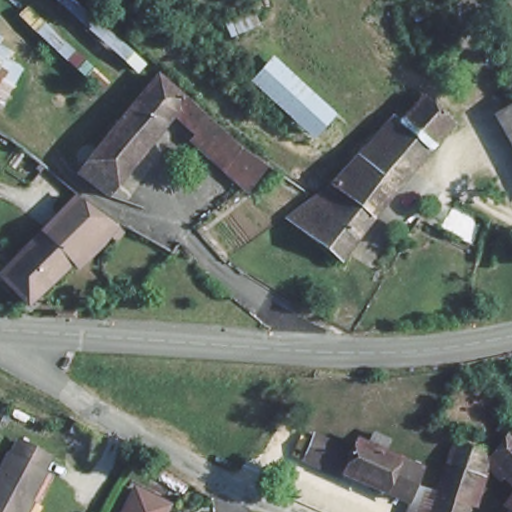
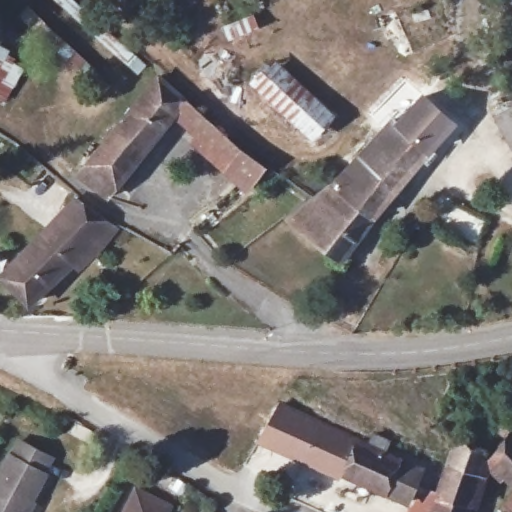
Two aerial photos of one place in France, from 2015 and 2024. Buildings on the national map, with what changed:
unchanged [(229,40),(219,11),(245,0),(249,0),(260,24),(229,40)]
unchanged [(512,0),(505,6),(499,0),(512,0)]
unchanged [(0,101),(0,51),(25,66),(5,104),(0,101)]
unchanged [(308,132),(261,89),(255,82),(270,66),(275,62),(329,112),(308,132)]
unchanged [(233,155),(228,160),(195,135),(199,128),(175,109),(108,189),(80,165),(158,70),(267,156),(255,171),(233,155)]
unchanged [(335,184),(395,120),(400,125),(426,96),(456,124),(382,200),(340,258),(287,219),(315,192),(328,179),(335,184)]
unchanged [(512,143),(497,117),(512,108),(512,143)]
unchanged [(119,229),(120,229),(110,241),(102,235),(94,243),(88,239),(26,302),(0,280),(0,272),(72,200),(108,227),(113,224),(119,229)]
new [(353,435),(347,445),(313,427),(299,450),(335,470),(338,463),(345,466),(338,477),(256,441),(280,400),(353,435)]
unchanged [(512,426),(510,428),(512,430),(512,478),(488,457),(506,435),(497,425),(505,415),(512,421),(512,426)]
unchanged [(415,467),(400,496),(338,463),(335,470),(299,450),(313,427),(347,445),(353,435),(362,440),(368,427),(385,435),(378,448),(415,467)]
unchanged [(462,500),(432,490),(450,436),(483,448),(466,502),(462,500)]
unchanged [(42,470),(45,470),(24,512),(0,512),(0,467),(6,455),(10,456),(19,438),(50,454),(42,470)]
unchanged [(165,501),(160,512),(125,512),(135,488),(165,501)]
unchanged [(462,500),(466,502),(463,512),(425,512),(432,490),(462,500)]
unchanged [(512,512),(509,512),(512,508),(512,512)]

